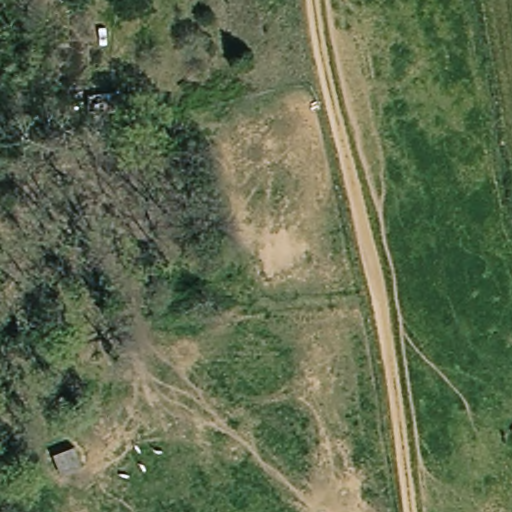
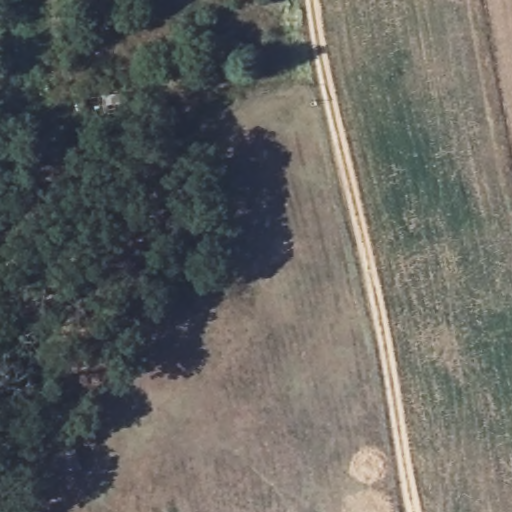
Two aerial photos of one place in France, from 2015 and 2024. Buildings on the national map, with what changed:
unchanged [(85,95),(119,93),(121,115),(86,116),(85,95)]

